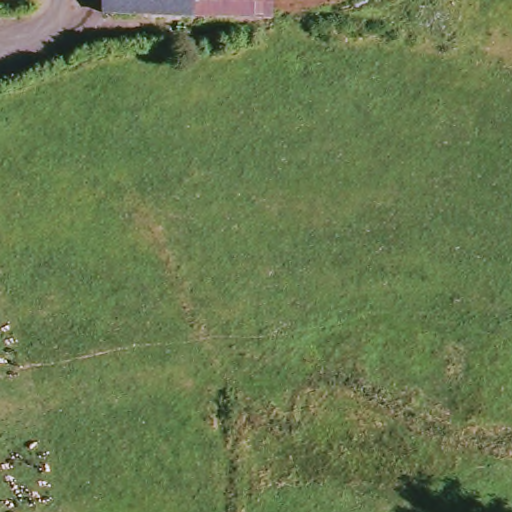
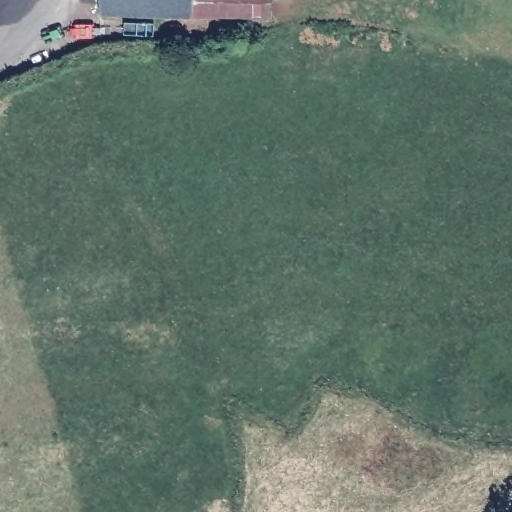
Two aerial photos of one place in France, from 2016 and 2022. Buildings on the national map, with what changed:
unchanged [(97,10),(98,0),(188,0),(187,15),(97,10)]
unchanged [(188,0),(271,0),(272,26),(187,15),(188,0)]

